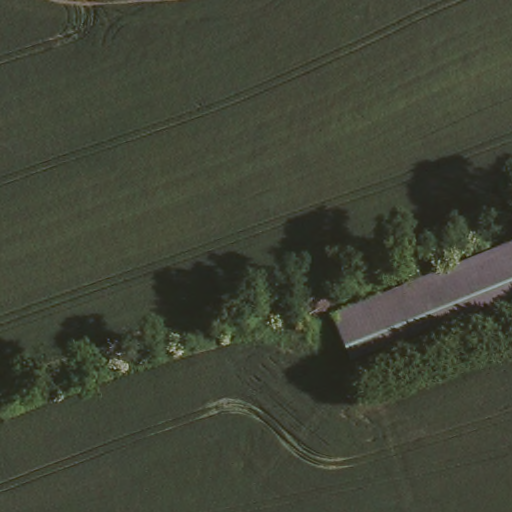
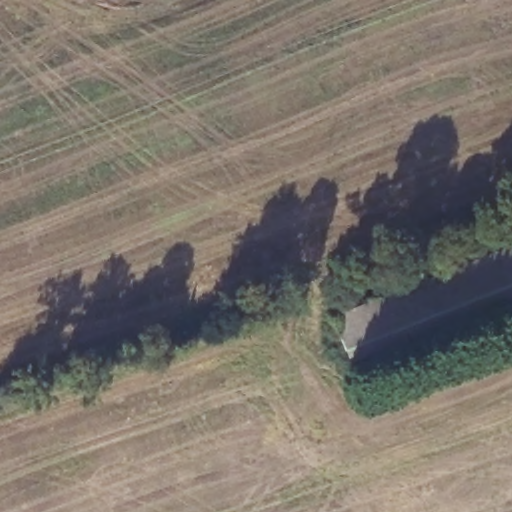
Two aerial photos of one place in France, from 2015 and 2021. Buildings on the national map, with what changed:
unchanged [(512,260),(512,298),(341,356),(329,323),(512,260)]

